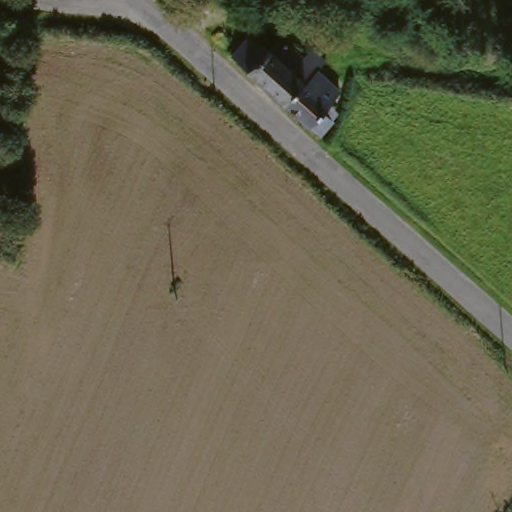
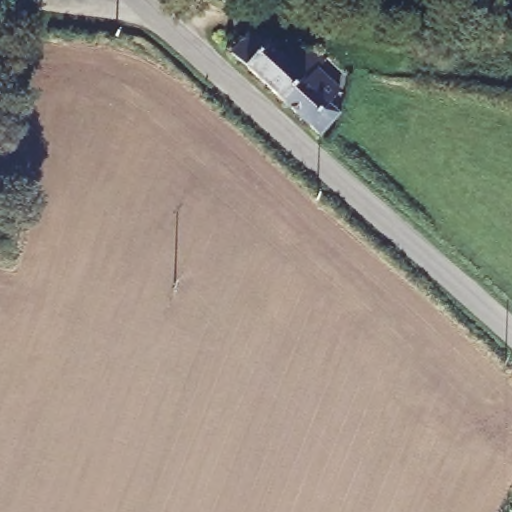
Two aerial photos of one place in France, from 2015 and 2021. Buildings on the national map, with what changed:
unchanged [(259,46),(279,62),(293,50),(312,65),(328,78),(318,90),(313,86),(295,107),(243,60),(259,46)]
unchanged [(313,86),(318,90),(340,109),(333,117),(343,127),(331,140),(295,107),(313,86)]
unchanged [(3,211),(0,211),(0,148),(3,148),(3,211)]

